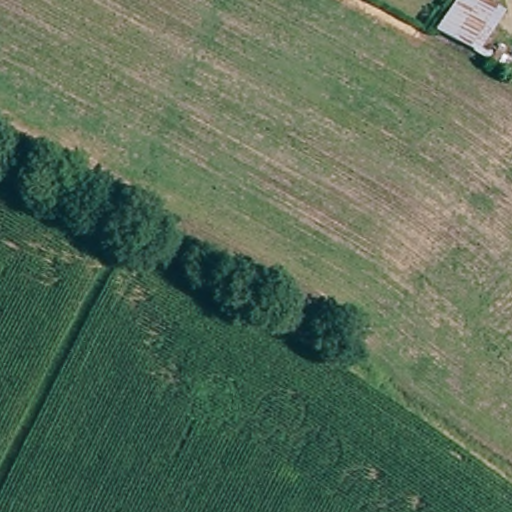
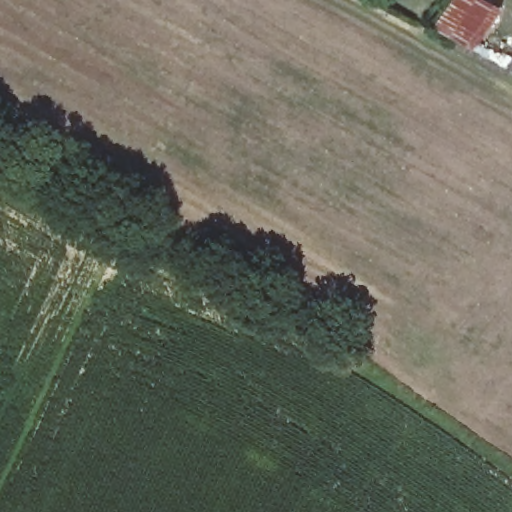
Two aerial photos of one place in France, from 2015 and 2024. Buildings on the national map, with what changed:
unchanged [(505,4),(478,49),(442,28),(461,0),(498,0),(505,4)]

